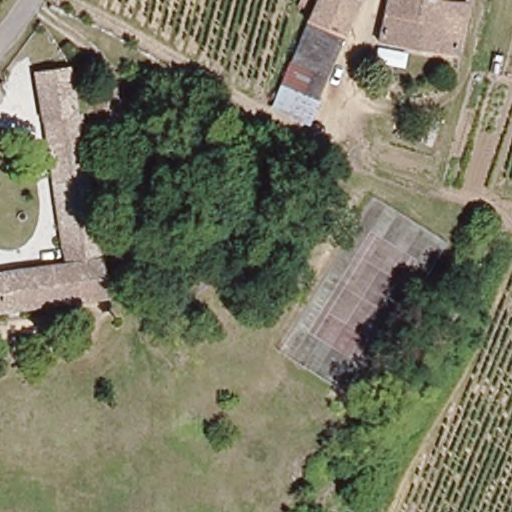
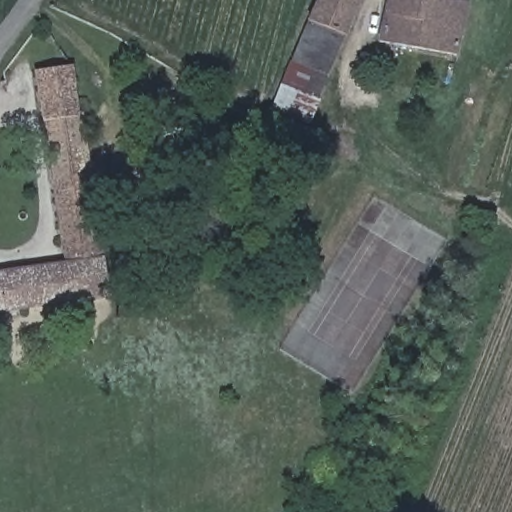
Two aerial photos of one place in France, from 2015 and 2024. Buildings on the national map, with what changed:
unchanged [(268,104),(277,85),(318,0),(356,0),(309,102),(299,120),(268,104)]
unchanged [(461,21),(452,56),(378,36),(387,0),(467,0),(461,21)]
unchanged [(38,58),(59,57),(63,87),(69,94),(82,92),(84,106),(73,109),(100,281),(104,304),(96,305),(0,317),(0,265),(61,260),(38,58)]

